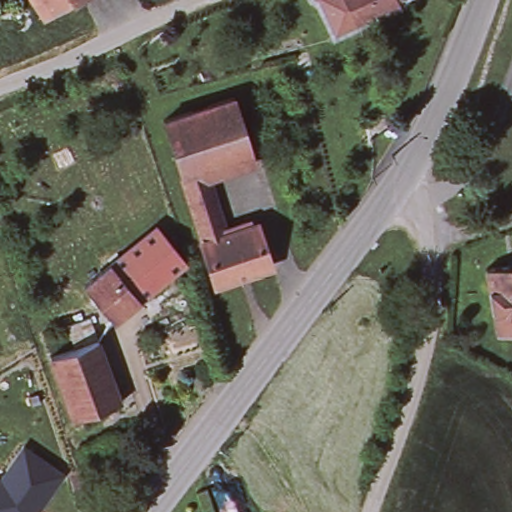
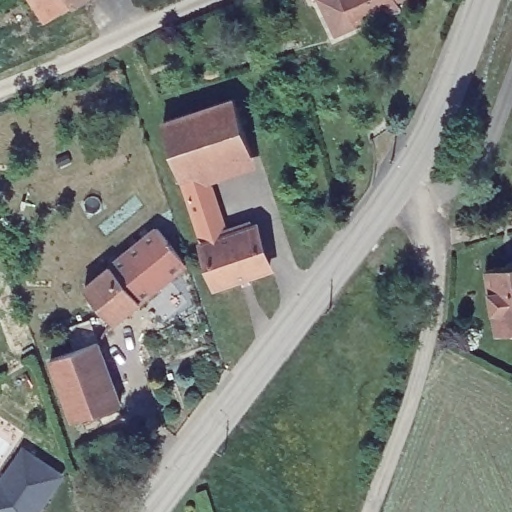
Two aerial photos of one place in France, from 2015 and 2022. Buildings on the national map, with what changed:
unchanged [(28,0),(47,0),(79,0),(43,23),(35,10),(28,0)]
unchanged [(317,0),(343,0),(394,0),(395,2),(353,22),(333,32),(317,0)]
unchanged [(230,99),(248,157),(197,173),(177,180),(158,122),(230,99)]
unchanged [(265,270),(212,287),(198,245),(177,180),(197,173),(215,232),(230,227),(232,233),(251,227),(265,270)]
unchanged [(188,265),(117,325),(86,288),(158,230),(188,265)]
unchanged [(512,267),(512,334),(497,336),(485,271),(512,267)]
unchanged [(100,341),(122,405),(75,422),(52,360),(100,341)]
unchanged [(3,481),(25,449),(62,475),(40,507),(36,512),(0,512),(0,481),(3,481)]

